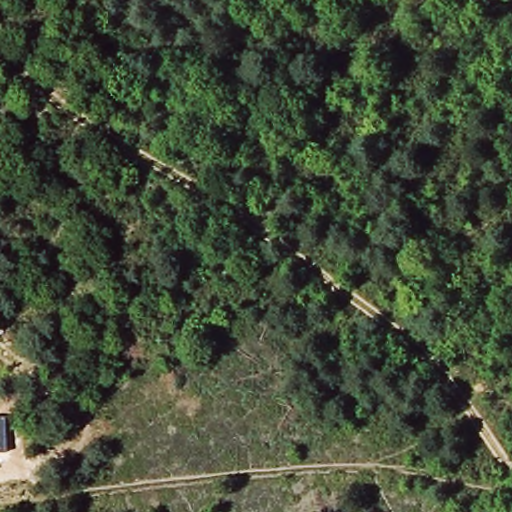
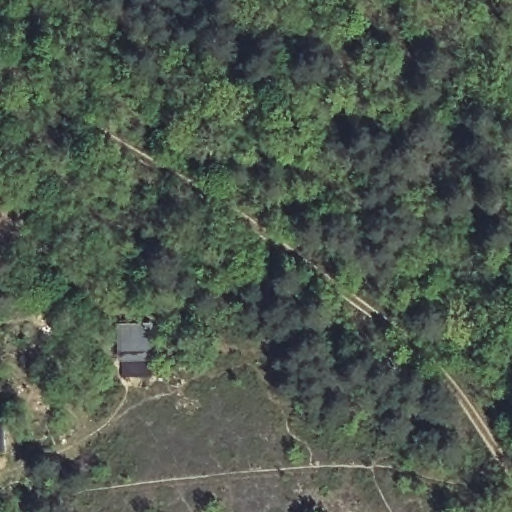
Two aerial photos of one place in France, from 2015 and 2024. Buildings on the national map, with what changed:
new [(153,377),(120,378),(120,325),(155,325),(155,341),(152,341),(155,363),(153,377)]
unchanged [(4,453),(0,453),(0,418),(3,418),(4,453)]

